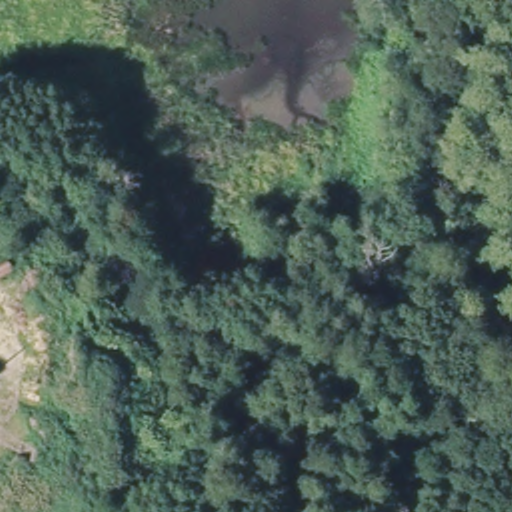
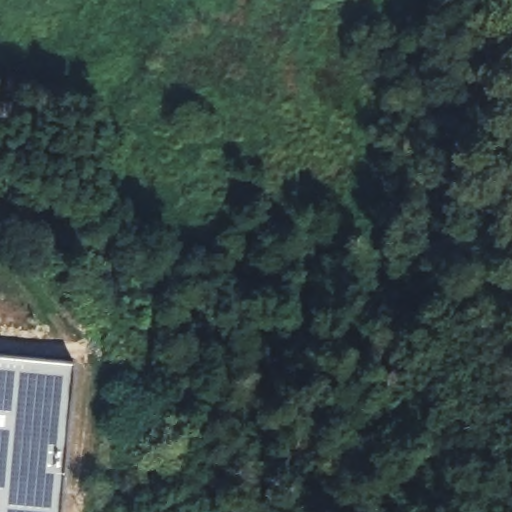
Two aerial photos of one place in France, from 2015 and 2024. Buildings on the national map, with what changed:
new [(61,487),(57,512),(0,512),(0,353),(70,359),(61,487)]

